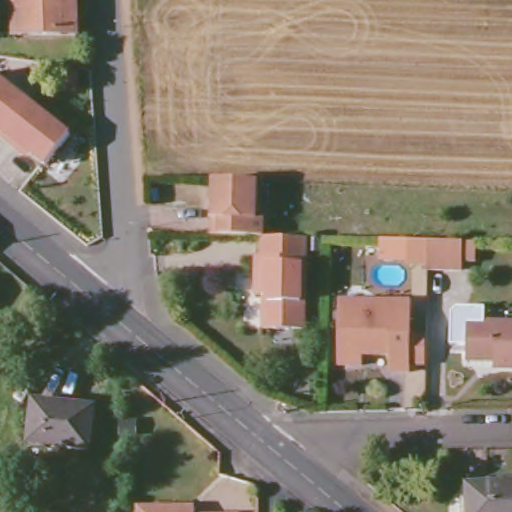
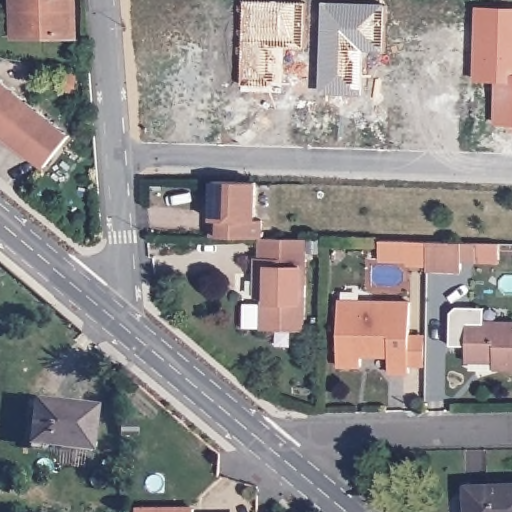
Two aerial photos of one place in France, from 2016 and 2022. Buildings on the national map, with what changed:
unchanged [(77,0),(78,36),(16,36),(15,0),(77,0)]
new [(268,45),(268,53),(275,59),(274,80),(267,87),(239,86),(241,1),(303,4),(302,46),(268,45)]
new [(348,49),(348,56),(355,63),(354,84),(347,91),(319,90),(322,5),(383,8),(382,50),(348,49)]
new [(475,19),(497,20),(512,21),(512,125),(493,124),(495,81),(473,81),(475,41),(475,19)]
unchanged [(46,168),(21,146),(18,150),(0,136),(0,80),(70,138),(46,168)]
unchanged [(212,235),(212,184),(254,185),(255,218),(261,219),(261,236),(212,235)]
unchanged [(303,329),(261,329),(262,295),(255,294),(255,258),(260,258),(261,236),(305,237),(303,329)]
unchanged [(478,239),(478,258),(465,258),(465,267),(430,266),(431,256),(419,256),(420,245),(431,245),(431,239),(465,239),(478,239)]
unchanged [(362,364),(338,363),(339,323),(340,300),(361,300),(410,302),(410,335),(425,335),(424,366),(410,366),(410,371),(390,371),(390,355),(372,355),(362,355),(362,364)]
unchanged [(467,356),(468,323),(512,323),(512,369),(493,369),(493,362),(467,361),(467,356)]
unchanged [(60,409),(61,406),(92,410),(88,452),(30,444),(35,406),(60,409)]
unchanged [(469,487),(512,485),(512,512),(470,512),(469,487)]
unchanged [(192,511),(192,512),(138,512),(138,511),(192,511)]

